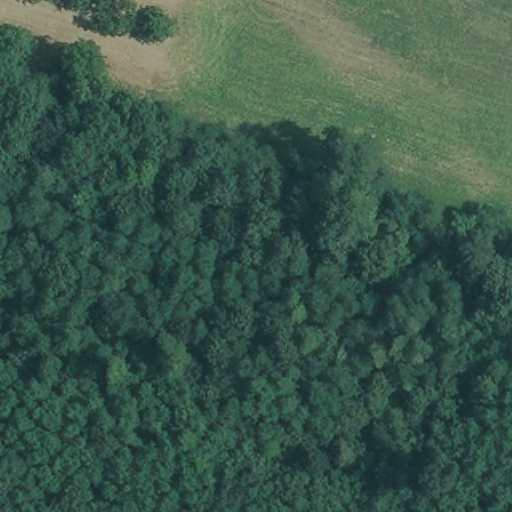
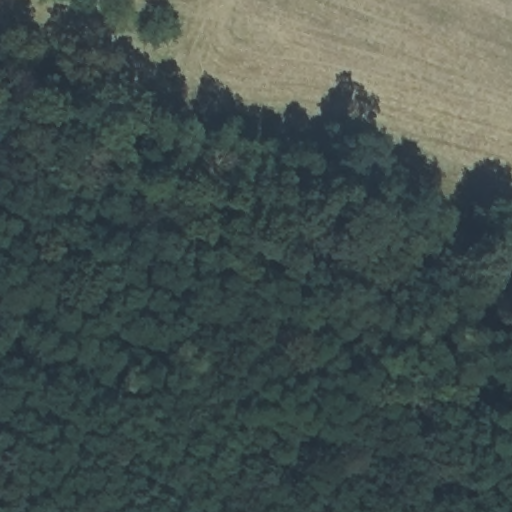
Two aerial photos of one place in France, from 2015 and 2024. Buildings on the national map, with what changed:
[]

